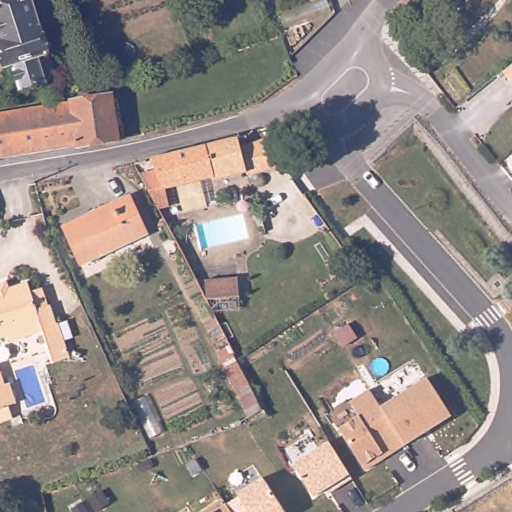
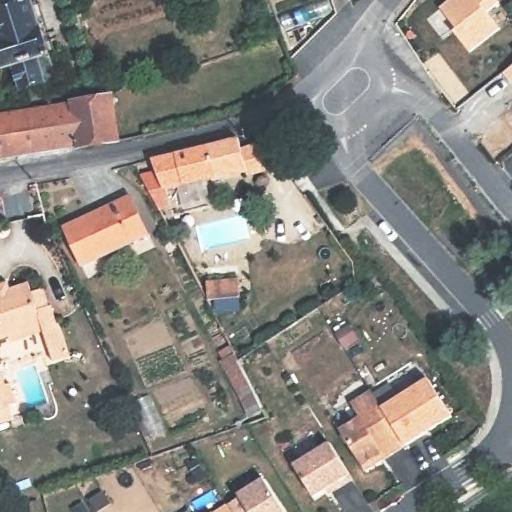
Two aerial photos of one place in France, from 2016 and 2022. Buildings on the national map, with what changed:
unchanged [(44,86),(35,88),(33,82),(18,86),(11,63),(0,65),(0,6),(20,0),(28,0),(51,73),(41,77),(44,86)]
new [(486,11),(498,27),(468,51),(453,31),(456,29),(440,7),(448,0),(495,0),(497,3),(486,11)]
unchanged [(512,63),(512,83),(502,70),(512,63)]
unchanged [(82,145),(81,140),(74,103),(74,101),(112,93),(121,137),(82,145)]
unchanged [(81,140),(0,157),(0,117),(53,107),(74,103),(81,140)]
unchanged [(230,173),(177,182),(180,194),(169,197),(157,169),(172,164),(169,153),(255,134),(257,145),(282,136),(300,164),(262,171),(261,168),(230,175),(230,173)]
unchanged [(151,156),(157,169),(145,174),(139,160),(151,156)]
unchanged [(83,264),(65,226),(129,194),(148,232),(83,264)]
unchanged [(202,279),(235,276),(236,295),(204,297),(202,279)]
unchanged [(12,285),(31,279),(34,288),(45,285),(50,303),(53,302),(59,321),(60,320),(66,338),(72,357),(56,362),(50,343),(44,322),(11,332),(0,336),(0,290),(12,285)]
unchanged [(13,399),(10,400),(14,414),(0,419),(0,360),(6,380),(15,378),(20,396),(13,399)]
unchanged [(425,378),(451,417),(405,446),(366,472),(362,466),(338,428),(357,417),(348,403),(370,390),(381,406),(425,378)]
unchanged [(292,465),(328,442),(349,476),(352,481),(328,496),(325,491),(313,498),(292,465)]
unchanged [(211,511),(235,494),(262,478),(283,512),(210,512),(211,511)]

